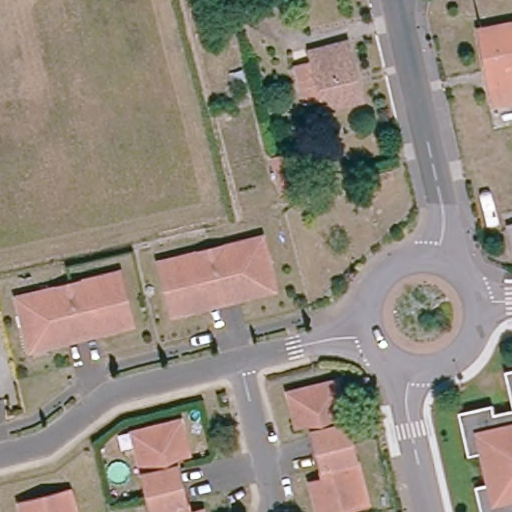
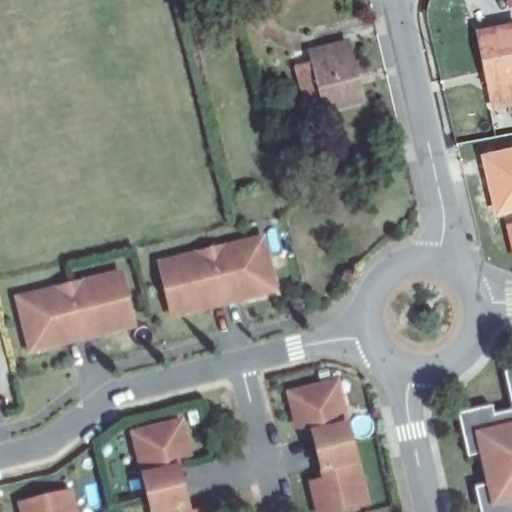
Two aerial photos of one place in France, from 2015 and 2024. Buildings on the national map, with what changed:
unchanged [(239,0),(251,0),(239,2),(239,0)]
unchanged [(509,21),(511,22),(512,26),(512,104),(494,108),(475,30),(509,21)]
unchanged [(315,73),(310,44),(346,36),(358,95),(306,105),(300,76),(315,73)]
new [(512,144),(512,210),(494,214),(480,151),(512,144)]
unchanged [(278,197),(265,160),(301,147),(313,186),(278,197)]
unchanged [(512,226),(512,253),(506,227),(512,226)]
unchanged [(258,292),(236,297),(220,301),(207,254),(261,240),(270,277),(272,288),(258,292)]
unchanged [(165,302),(156,266),(207,254),(220,301),(204,305),(181,311),(168,315),(165,302)]
unchanged [(130,325),(118,328),(94,335),(81,338),(69,289),(119,276),(128,311),(131,323),(130,325)]
unchanged [(25,338),(16,302),(69,289),(81,338),(69,340),(68,340),(67,341),(42,347),(28,351),(25,338)]
unchanged [(473,485),(489,481),(482,451),(466,455),(457,411),(490,403),(492,412),(511,408),(503,370),(512,368),(512,512),(480,512),(473,485)]
unchanged [(313,450),(308,431),(306,421),(294,424),(292,422),(284,392),(320,383),(333,380),(336,391),(349,440),(313,450)]
unchanged [(184,457),(172,460),(174,471),(174,472),(178,487),(145,496),(132,450),(130,440),(131,435),(142,433),(177,425),(184,457)]
unchanged [(350,505),(320,512),(315,512),(307,481),(321,478),(317,465),(313,450),(349,440),(362,487),(365,501),(350,505)]
unchanged [(145,496),(178,487),(182,504),(184,512),(149,512),(145,496)]
unchanged [(18,505),(19,502),(49,493),(61,490),(64,492),(66,501),(69,512),(20,512),(18,505)]

